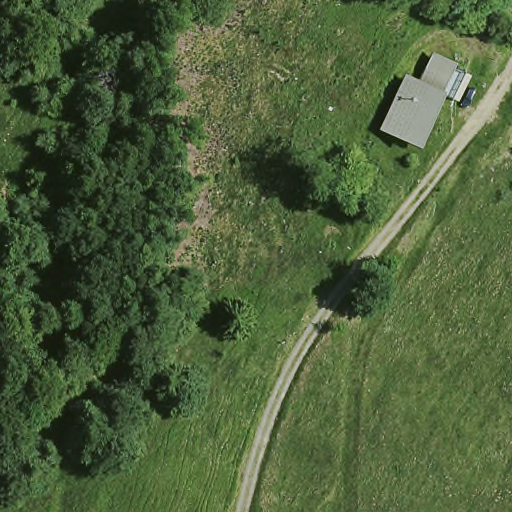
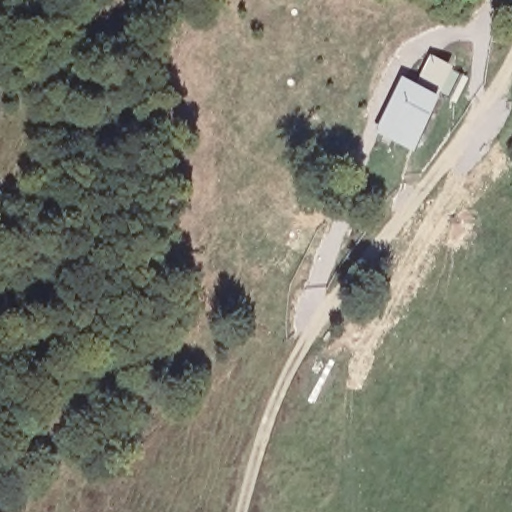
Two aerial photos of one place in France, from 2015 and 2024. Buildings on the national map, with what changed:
unchanged [(420,84),(434,60),(465,77),(450,103),(437,95),(420,84)]
unchanged [(407,75),(420,84),(437,95),(408,145),(377,126),(407,75)]

